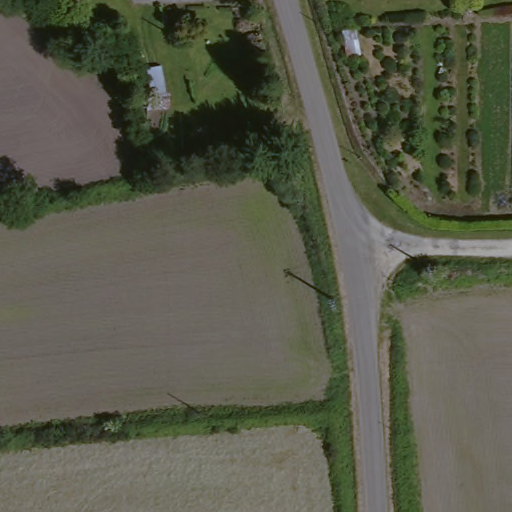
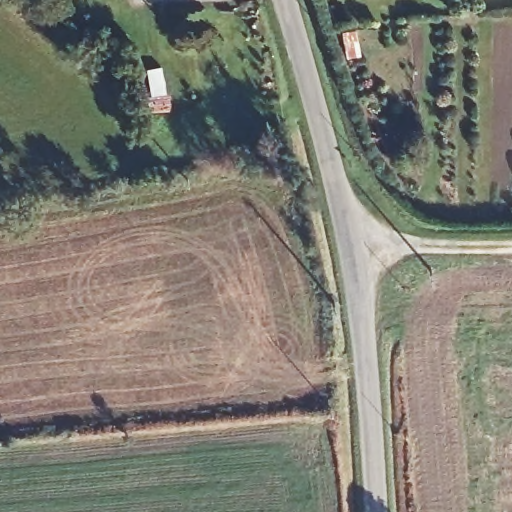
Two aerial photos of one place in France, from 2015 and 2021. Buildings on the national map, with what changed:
unchanged [(165,63),(169,110),(148,114),(144,68),(165,63)]

